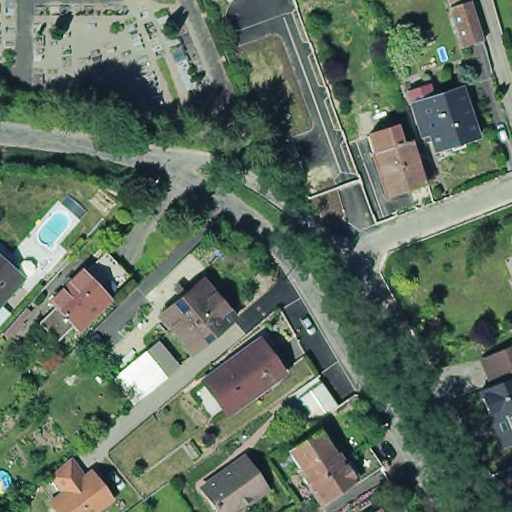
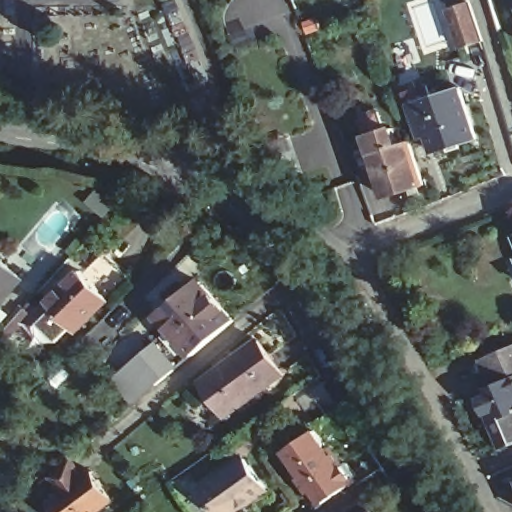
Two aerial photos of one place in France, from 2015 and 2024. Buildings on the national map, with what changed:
unchanged [(470,54),(467,55),(455,17),(458,16),(475,11),(485,40),(487,49),(470,54)]
unchanged [(485,146),(444,159),(439,142),(430,144),(420,111),(417,100),(435,94),(439,105),(469,96),(485,146)]
unchanged [(426,179),(392,189),(379,149),(373,131),(400,122),(405,141),(414,138),(426,179)]
unchanged [(79,331),(50,302),(65,288),(62,285),(70,278),(72,281),(83,270),(85,272),(107,252),(130,276),(107,297),(110,300),(79,331)]
unchanged [(0,299),(0,255),(22,274),(0,299)]
unchanged [(178,312),(195,296),(187,286),(194,281),(202,291),(216,278),(250,316),(217,342),(209,350),(178,312)]
unchanged [(116,375),(137,357),(157,341),(177,365),(157,381),(135,398),(116,375)]
unchanged [(230,416),(205,382),(262,341),(286,375),(230,416)]
unchanged [(504,387),(497,390),(485,362),(512,351),(512,384),(504,387)]
unchanged [(313,412),(311,410),(305,400),(330,384),(335,392),(338,397),(313,412)]
unchanged [(509,418),(495,424),(482,396),(497,390),(504,387),(512,384),(512,426),(509,418)]
unchanged [(344,460),(349,457),(348,456),(371,442),(385,465),(362,478),(357,472),(354,474),(357,478),(321,501),(297,466),(299,465),(287,448),(318,426),(330,443),(332,442),(344,460)]
unchanged [(267,479),(262,483),(225,510),(205,481),(241,454),(247,450),(267,479)]
unchanged [(108,512),(52,512),(65,501),(51,485),(71,467),(86,485),(94,478),(100,486),(116,506),(108,512)]

